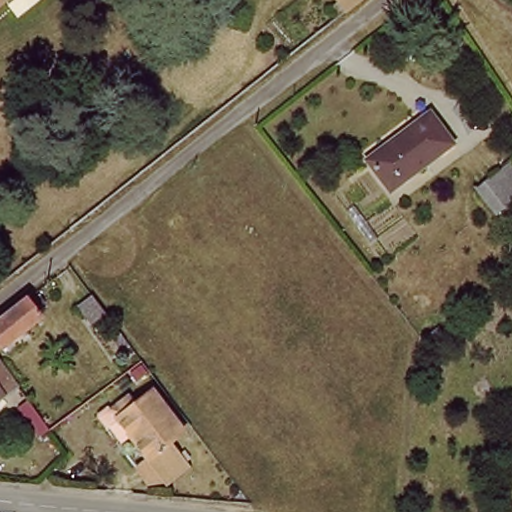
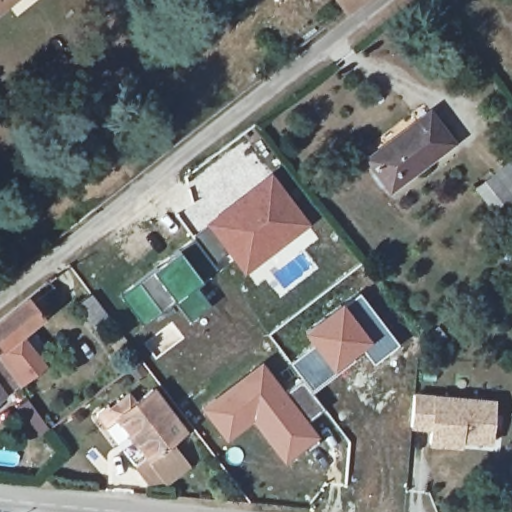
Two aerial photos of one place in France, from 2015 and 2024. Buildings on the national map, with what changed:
unchanged [(0,0),(6,0),(0,5),(0,0)]
unchanged [(338,0),(358,0),(345,10),(338,0)]
unchanged [(431,111),(452,143),(393,188),(370,157),(431,111)]
unchanged [(495,218),(475,183),(512,164),(512,205),(495,218)]
new [(270,171),(311,223),(242,272),(203,223),(270,171)]
new [(188,322),(173,302),(143,325),(118,293),(178,247),(201,279),(196,283),(211,304),(188,322)]
new [(359,290),(399,344),(371,364),(363,355),(359,349),(369,341),(342,302),(359,290)]
unchanged [(44,318),(3,347),(0,343),(0,310),(25,291),(44,318)]
new [(79,304),(93,295),(112,321),(98,331),(79,304)]
new [(341,300),(342,302),(369,341),(359,349),(363,355),(336,373),(311,344),(300,329),(341,300)]
new [(285,390),(301,378),(288,362),(311,344),(336,373),(312,392),(324,408),(308,420),(319,434),(283,461),(251,421),(226,441),(200,407),(261,359),(273,374),(285,390)]
unchanged [(0,396),(0,361),(16,383),(0,396)]
unchanged [(161,481),(145,456),(108,401),(131,386),(138,399),(156,386),(184,428),(167,440),(183,465),(161,481)]
new [(463,440),(462,449),(429,446),(431,430),(412,428),(415,394),(434,395),(496,401),(493,443),(463,440)]

